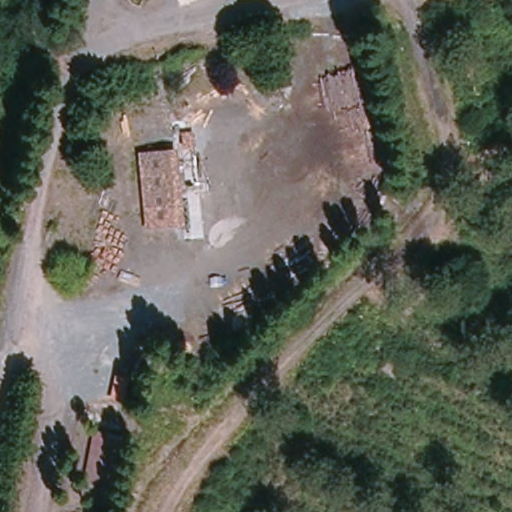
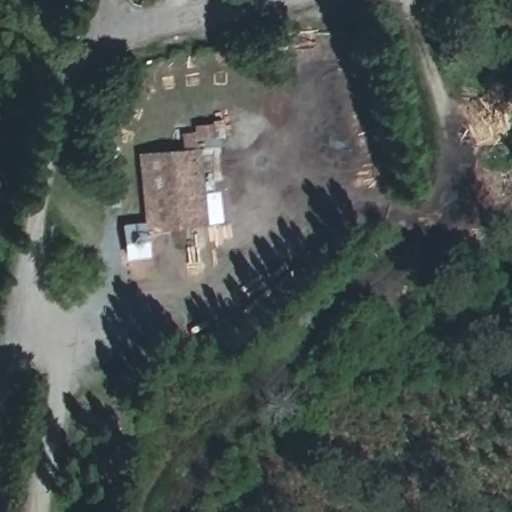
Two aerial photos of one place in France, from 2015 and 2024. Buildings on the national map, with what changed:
unchanged [(202,225),(144,230),(137,152),(195,150),(202,225)]
unchanged [(131,403),(110,400),(115,375),(136,377),(131,403)]
unchanged [(110,482),(84,478),(94,430),(118,432),(110,482)]

